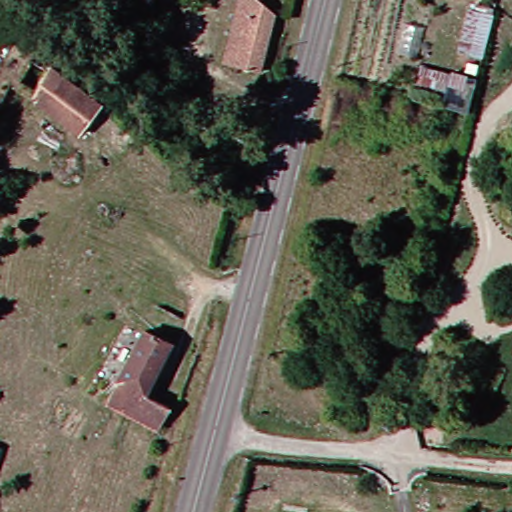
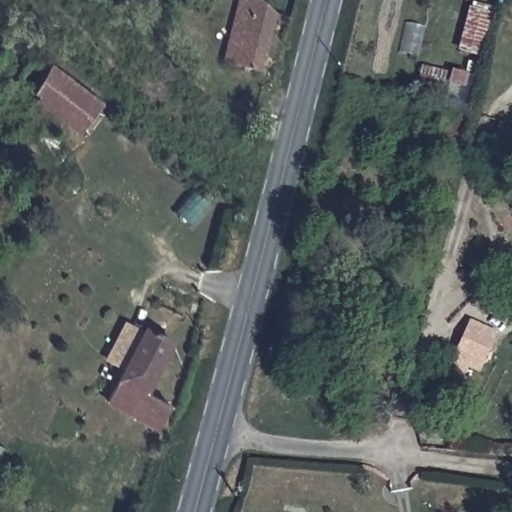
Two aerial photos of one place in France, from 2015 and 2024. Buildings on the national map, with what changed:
unchanged [(269,0),(288,17),(285,30),(270,17),(254,71),(224,65),(242,0),(251,0),(260,8),(266,0),(269,0)]
unchanged [(487,56),(460,50),(474,5),(500,12),(487,56)]
unchanged [(63,70),(109,106),(86,131),(41,96),(63,70)]
new [(498,333),(477,378),(450,364),(470,320),(498,333)]
unchanged [(174,338),(150,391),(174,400),(165,421),(114,402),(147,328),(174,338)]

